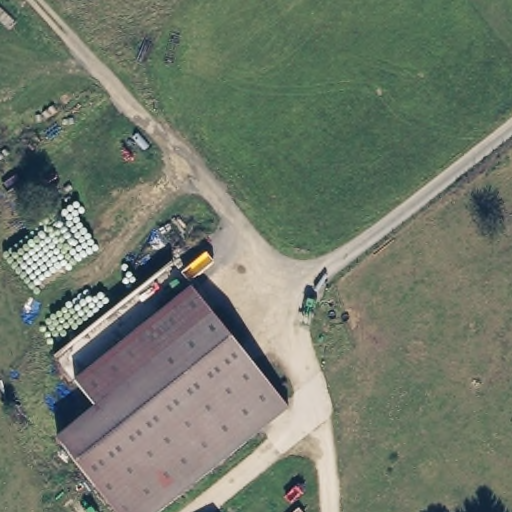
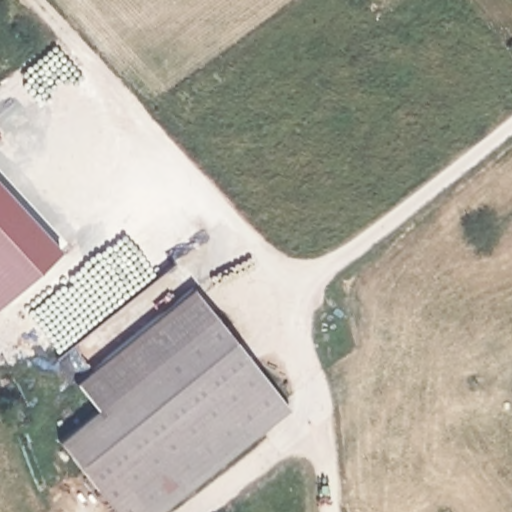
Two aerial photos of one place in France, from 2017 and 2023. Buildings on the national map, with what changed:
new [(0,309),(0,184),(62,250),(0,309)]
unchanged [(288,407),(160,512),(114,512),(60,443),(96,410),(77,386),(194,288),(288,407)]

